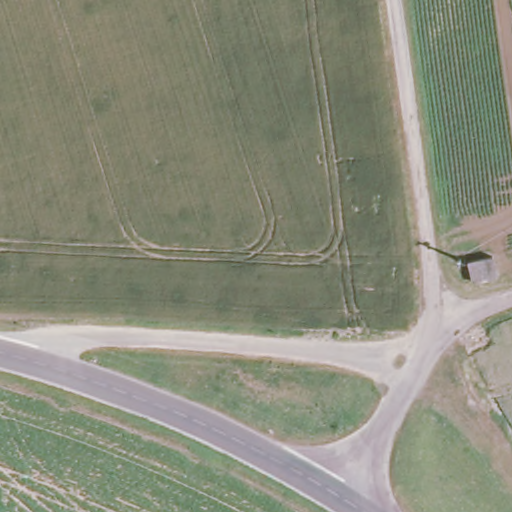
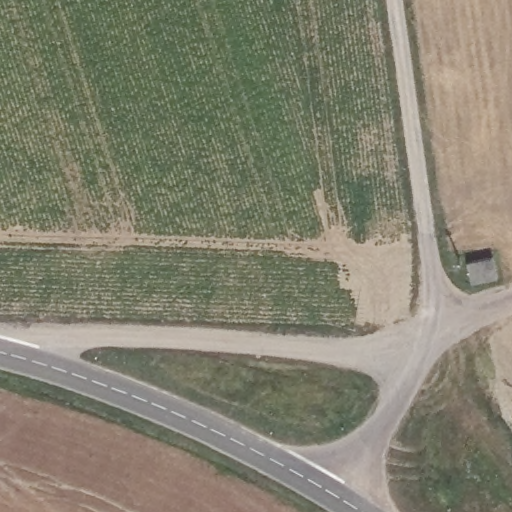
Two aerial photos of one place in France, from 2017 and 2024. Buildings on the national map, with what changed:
unchanged [(488,253),(497,273),(473,282),(465,263),(488,253)]

